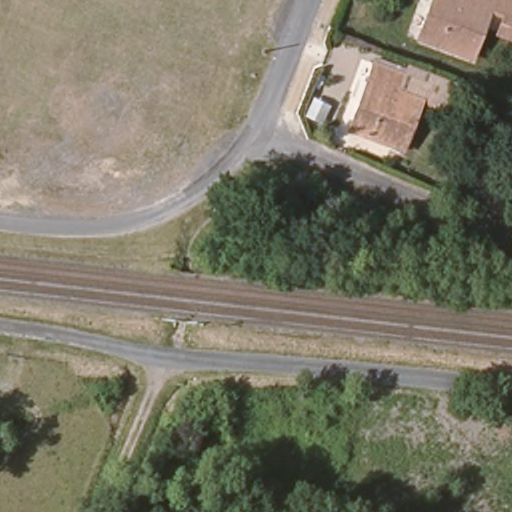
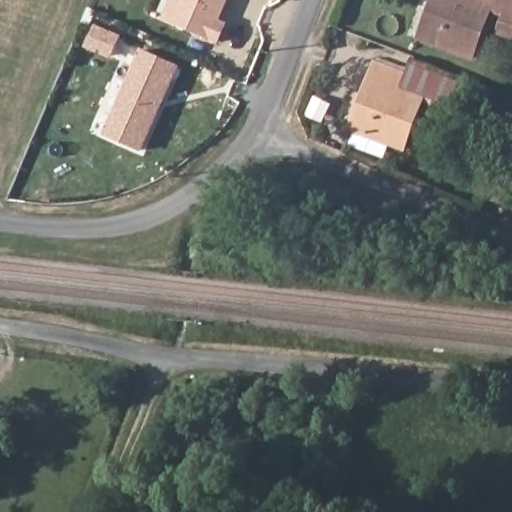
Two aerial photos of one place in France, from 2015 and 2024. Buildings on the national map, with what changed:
new [(161,20),(170,0),(229,0),(220,20),(228,22),(219,45),(161,20)]
unchanged [(430,8),(436,10),(441,0),(512,0),(512,39),(501,35),(507,17),(491,11),(474,56),(419,34),(430,8)]
new [(140,51),(175,66),(140,149),(105,134),(140,51)]
unchanged [(350,129),(360,102),(366,105),(376,83),(370,80),(376,64),(407,75),(402,94),(424,102),(405,151),(350,129)]

